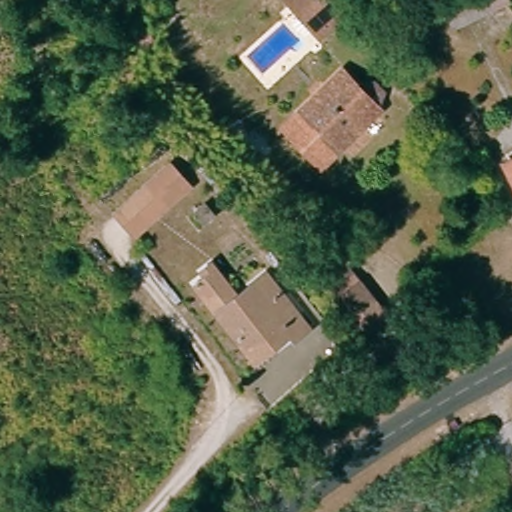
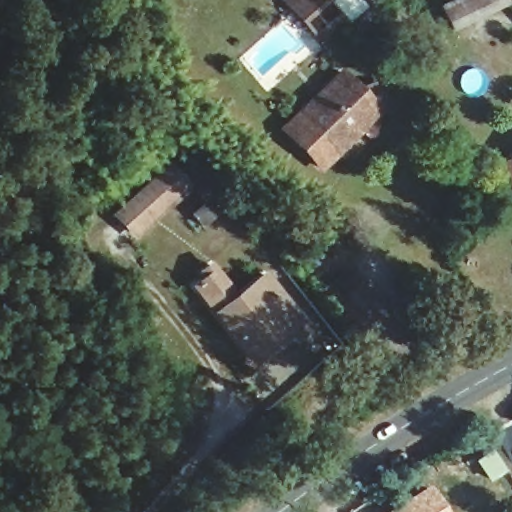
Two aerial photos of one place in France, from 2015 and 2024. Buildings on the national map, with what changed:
unchanged [(348,24),(323,45),(287,4),(292,0),(328,0),(348,24)]
unchanged [(443,5),(454,0),(510,0),(512,2),(512,3),(455,31),(443,5)]
unchanged [(329,165),(291,124),(349,67),(370,89),(385,81),(393,90),(386,105),(388,108),(329,165)]
unchanged [(125,225),(104,200),(161,150),(182,174),(125,225)]
unchanged [(512,165),(512,169),(510,166),(512,165)]
unchanged [(206,222),(195,210),(208,200),(218,212),(206,222)]
unchanged [(257,361),(198,286),(208,278),(203,273),(213,265),(240,298),(268,277),(309,330),(297,340),(292,334),(274,348),(257,361)]
unchanged [(365,331),(338,298),(329,286),(353,267),(362,278),(387,310),(365,331)]
new [(448,512),(385,512),(428,483),(448,512)]

